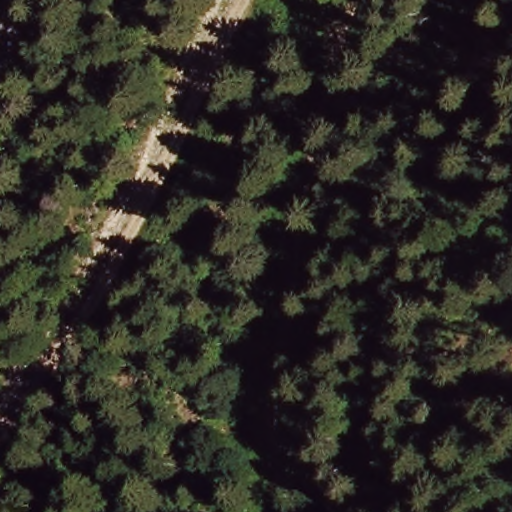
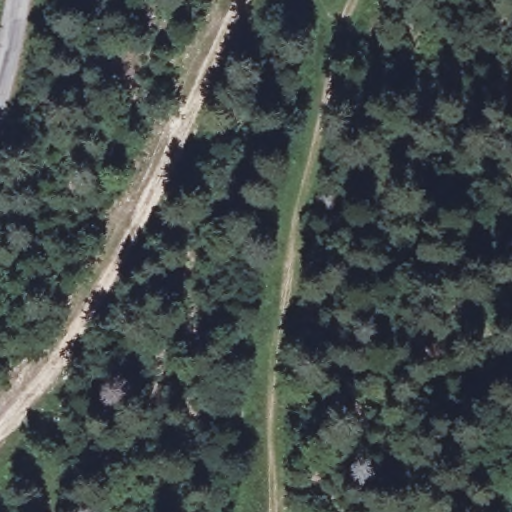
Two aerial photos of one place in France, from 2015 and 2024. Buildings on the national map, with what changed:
[]

